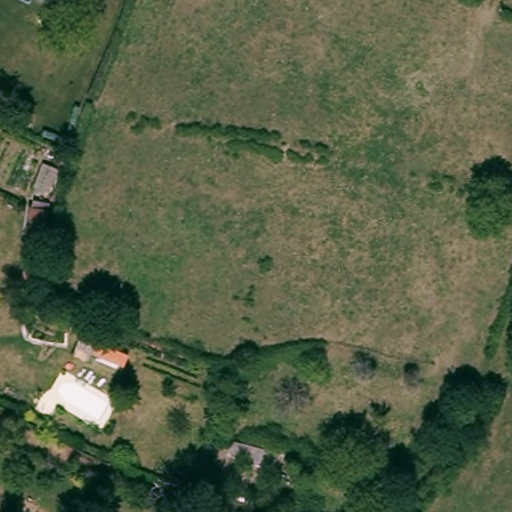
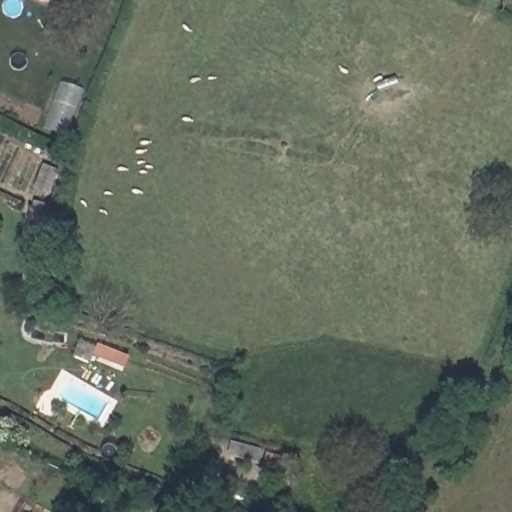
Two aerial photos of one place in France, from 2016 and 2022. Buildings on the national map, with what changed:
unchanged [(25,274),(31,243),(34,228),(30,227),(35,199),(55,203),(55,204),(47,247),(41,278),(25,274)]
unchanged [(0,285),(0,281),(2,283),(0,285)]

